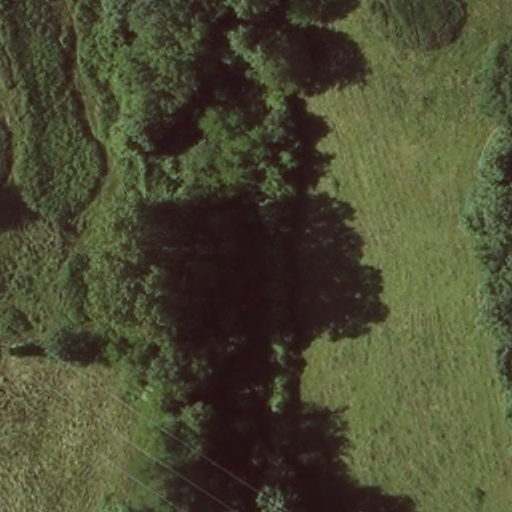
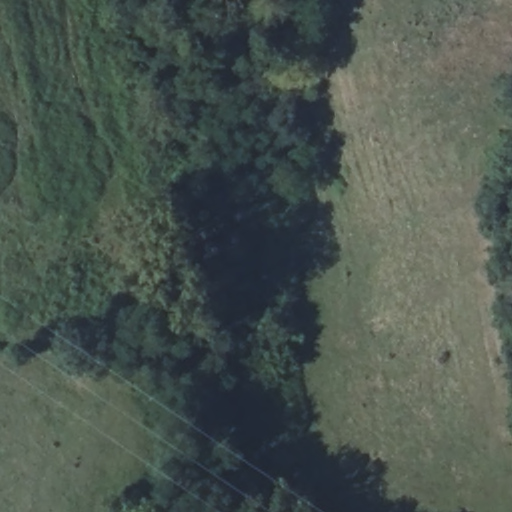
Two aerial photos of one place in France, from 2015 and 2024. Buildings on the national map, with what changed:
[]

